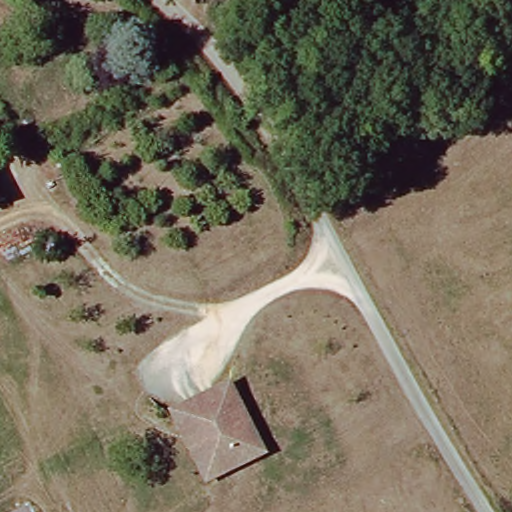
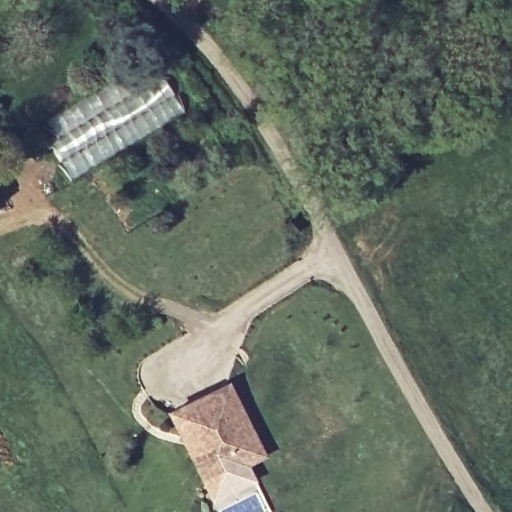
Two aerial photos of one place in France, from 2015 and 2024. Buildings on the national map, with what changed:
new [(149,58),(186,112),(70,181),(38,124),(149,58)]
unchanged [(0,208),(0,194),(5,205),(0,208)]
unchanged [(170,413),(174,411),(228,384),(263,454),(219,478),(205,484),(170,413)]
demolished [(37,512),(11,512),(32,501),(37,512)]

